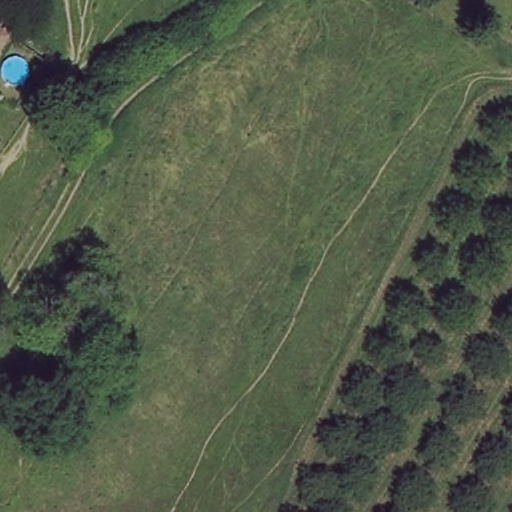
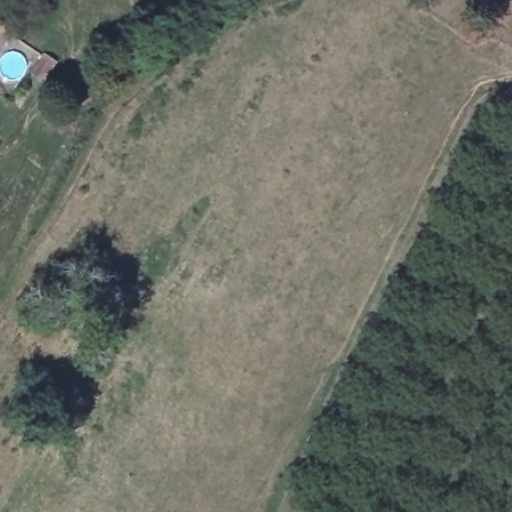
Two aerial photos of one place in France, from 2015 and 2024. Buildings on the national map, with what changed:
unchanged [(0,28),(0,15),(6,19),(0,28)]
unchanged [(70,58),(59,76),(44,66),(52,48),(70,58)]

